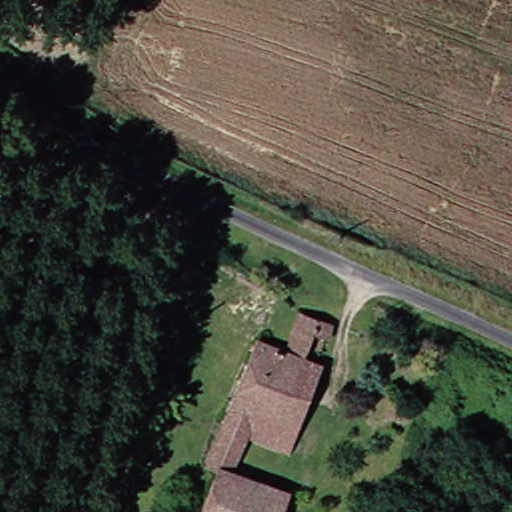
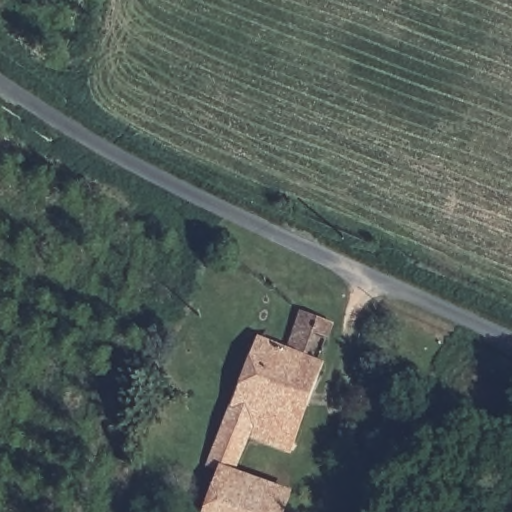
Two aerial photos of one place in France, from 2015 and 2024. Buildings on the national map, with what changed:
unchanged [(292,390),(316,403),(298,450),(255,435),(240,472),(293,490),(286,512),(207,512),(224,466),(214,461),(262,334),(291,343),(305,306),(322,313),(307,351),(292,390)]
unchanged [(334,363),(316,403),(292,390),(307,351),(334,363)]

